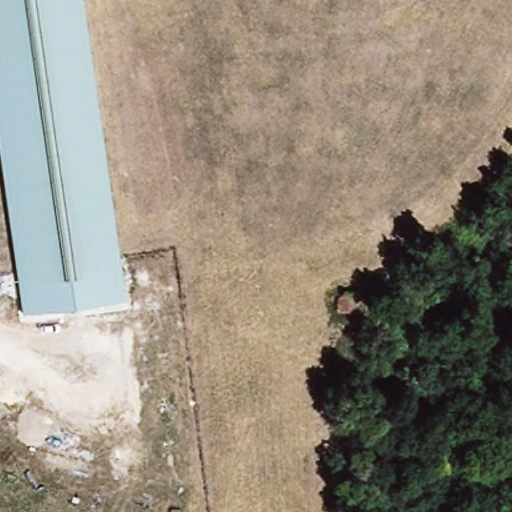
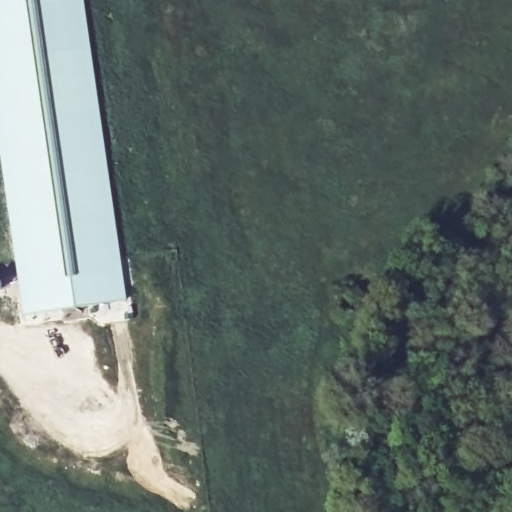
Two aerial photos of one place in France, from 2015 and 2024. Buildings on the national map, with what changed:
unchanged [(22,313),(0,156),(0,0),(82,0),(124,299),(22,313)]

